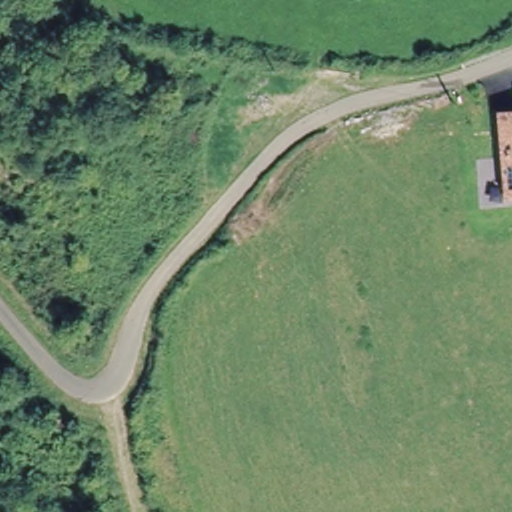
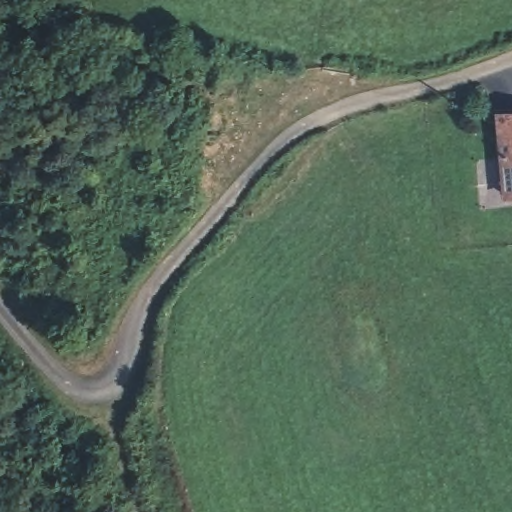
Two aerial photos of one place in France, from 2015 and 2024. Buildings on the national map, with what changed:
unchanged [(505,195),(497,118),(512,116),(512,195),(505,195)]

